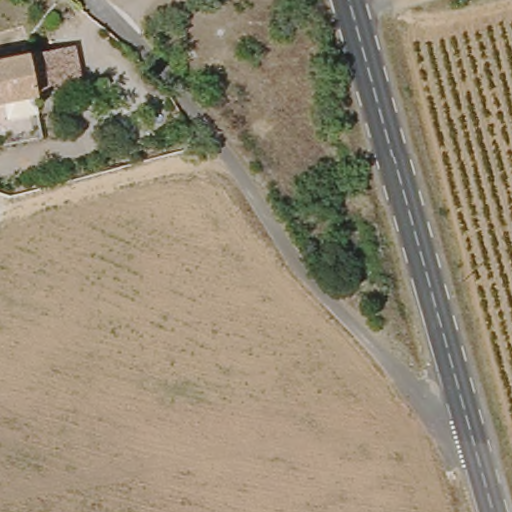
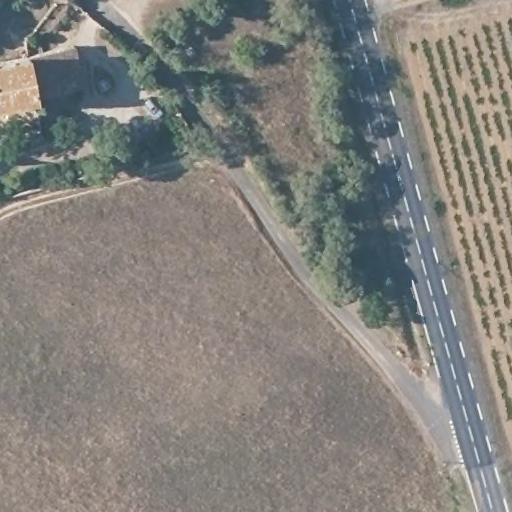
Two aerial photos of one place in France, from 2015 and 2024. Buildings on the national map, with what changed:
unchanged [(34,71),(82,62),(88,88),(0,105),(0,53),(29,47),(34,71)]

